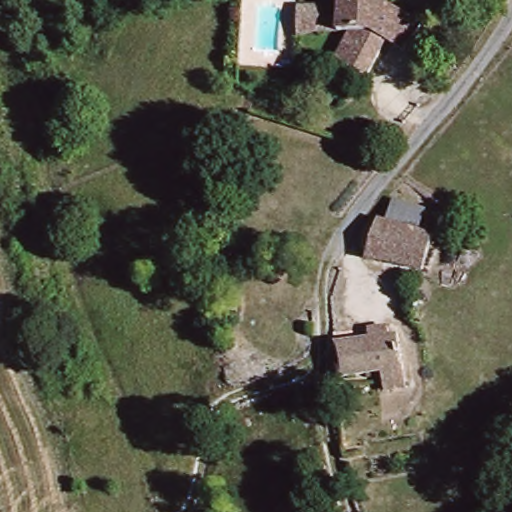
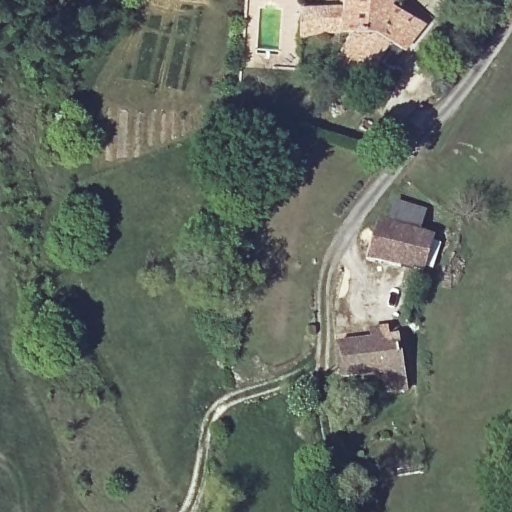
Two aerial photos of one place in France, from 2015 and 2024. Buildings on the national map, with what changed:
unchanged [(305,31),(299,0),(388,0),(387,7),(393,12),(407,22),(412,27),(418,33),(417,34),(400,51),(386,40),(365,77),(342,64),(363,28),(355,25),(305,31)]
unchanged [(378,268),(378,225),(391,227),(393,205),(423,209),(420,232),(431,234),(424,276),(378,268)]
unchanged [(342,378),(341,344),(370,341),(368,335),(387,334),(390,342),(398,341),(402,375),(404,394),(383,396),(382,376),(342,378)]

